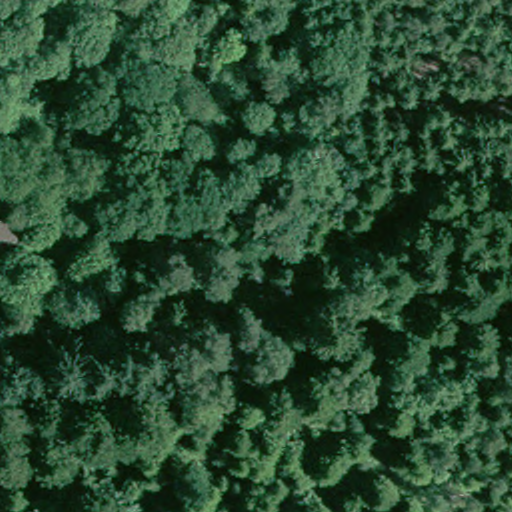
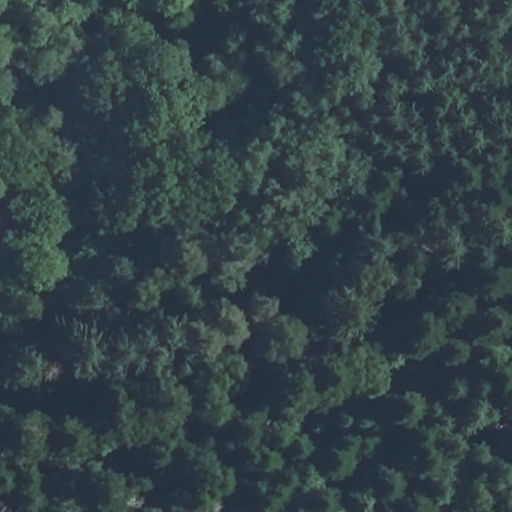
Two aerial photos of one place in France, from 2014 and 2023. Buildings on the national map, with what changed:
unchanged [(10,216),(20,260),(0,264),(0,218),(10,216)]

